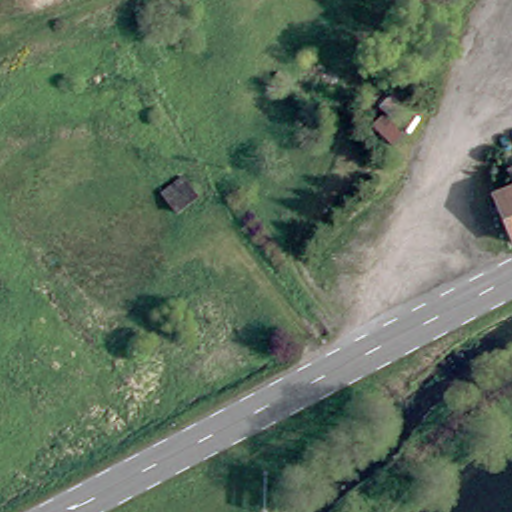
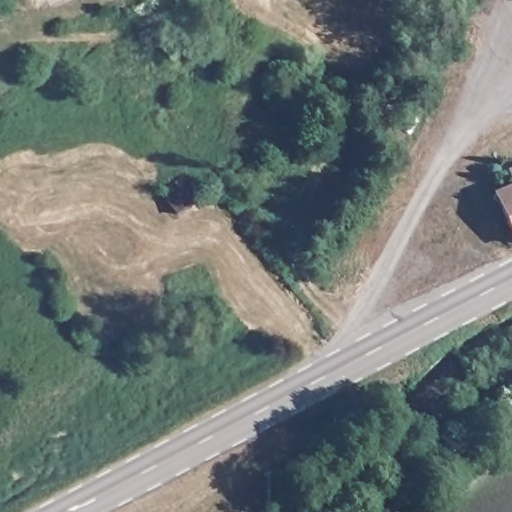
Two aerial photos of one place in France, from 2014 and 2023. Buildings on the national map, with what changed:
unchanged [(404,144),(392,128),(416,108),(429,125),(404,144)]
unchanged [(398,141),(417,163),(403,173),(385,150),(398,141)]
unchanged [(512,179),(512,189),(508,181),(512,179)]
unchanged [(175,218),(162,196),(187,183),(200,205),(175,218)]
unchanged [(512,236),(497,208),(512,199),(512,236)]

